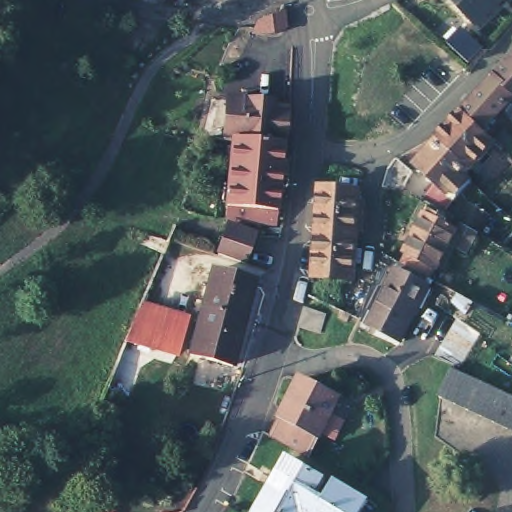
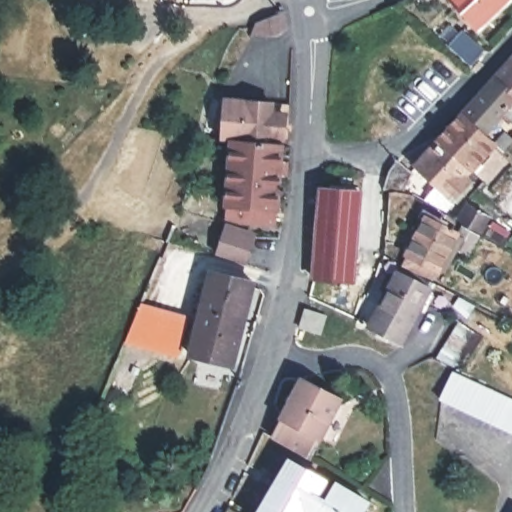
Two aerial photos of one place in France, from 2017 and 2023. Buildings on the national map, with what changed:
unchanged [(78,7),(77,0),(98,0),(97,9),(78,7)]
unchanged [(158,0),(156,15),(142,14),(143,0),(158,0)]
unchanged [(464,0),(500,0),(481,19),(464,0)]
unchanged [(194,1),(205,2),(203,19),(191,18),(194,1)]
unchanged [(270,26),(276,12),(292,6),(293,29),(268,31),(270,26)]
unchanged [(467,25),(485,44),(472,57),(453,39),(467,25)]
unchanged [(491,77),(512,54),(512,98),(491,77)]
unchanged [(491,77),(512,98),(512,124),(499,112),(479,133),(459,115),(491,77)]
unchanged [(291,97),(290,132),(272,132),(272,137),(240,137),(229,137),(231,107),(232,97),(235,97),(291,97)]
unchanged [(479,133),(489,141),(465,168),(437,139),(459,115),(479,133)]
unchanged [(272,137),(282,138),(281,155),(288,156),(287,167),(281,167),(277,220),(235,217),(240,137),(272,137)]
unchanged [(434,185),(414,165),(437,139),(465,168),(458,176),(465,182),(449,200),(448,199),(444,204),(439,210),(421,199),(434,185)]
unchanged [(383,186),(388,172),(395,159),(404,167),(410,174),(401,191),(388,187),(383,186)]
unchanged [(324,200),(332,189),(367,192),(366,202),(371,203),(367,229),(361,228),(354,278),(315,274),(324,200)]
unchanged [(466,196),(488,209),(479,227),(456,212),(466,196)]
unchanged [(427,210),(464,229),(406,337),(370,318),(427,210)]
unchanged [(230,224),(255,232),(246,257),(222,249),(230,224)]
unchanged [(214,266),(250,275),(228,358),(191,347),(214,266)]
unchanged [(141,299),(188,312),(179,345),(128,328),(141,299)]
unchanged [(309,306),(327,309),(321,327),(303,323),(309,306)]
unchanged [(463,371),(444,359),(467,321),(489,333),(467,372),(463,371)]
unchanged [(512,394),(512,430),(449,399),(463,371),(467,372),(512,394)]
unchanged [(305,373),(342,393),(310,451),(276,430),(305,373)]
unchanged [(293,452),(326,473),(318,487),(327,492),(336,477),(381,505),(377,511),(365,503),(359,512),(307,512),(304,510),(303,512),(256,512),(293,452)]

